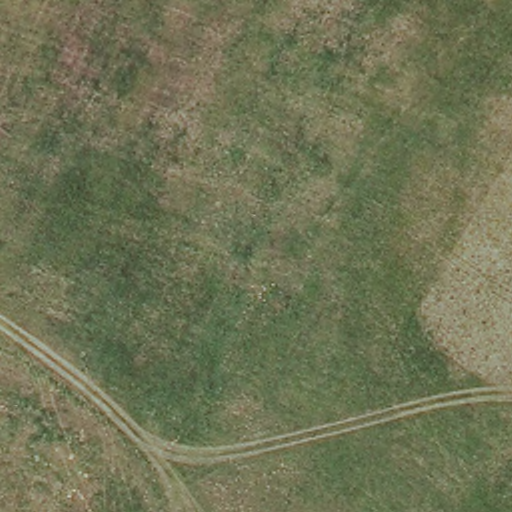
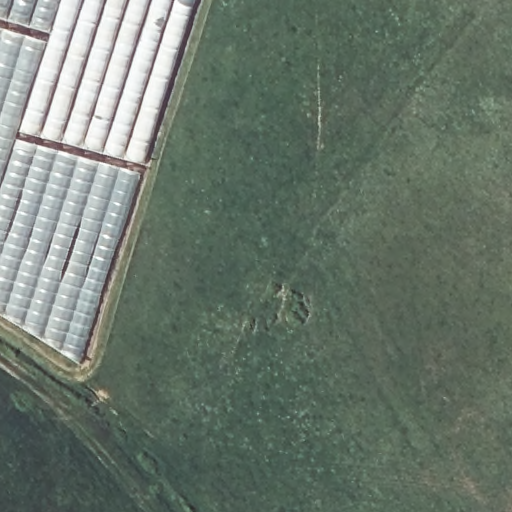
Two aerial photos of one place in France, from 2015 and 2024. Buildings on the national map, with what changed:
new [(142,166),(47,142),(17,133),(15,138),(0,185),(0,0),(197,0),(142,166)]
new [(15,138),(136,176),(122,210),(116,209),(109,217),(105,215),(92,258),(108,263),(85,341),(77,339),(76,341),(75,341),(74,343),(66,354),(0,309),(0,185),(15,138)]

